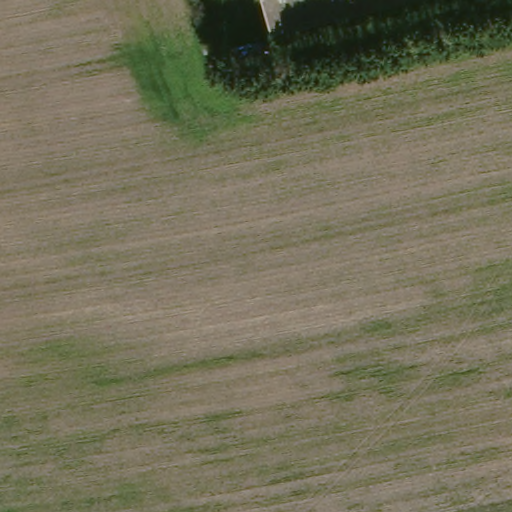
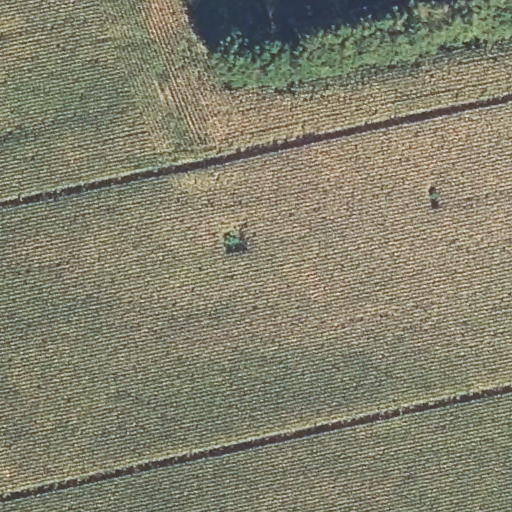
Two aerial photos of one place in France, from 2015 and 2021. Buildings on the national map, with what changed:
unchanged [(263,0),(412,0),(272,34),(263,0)]

